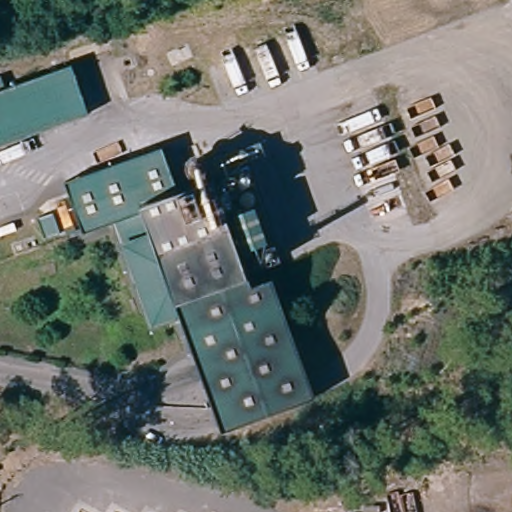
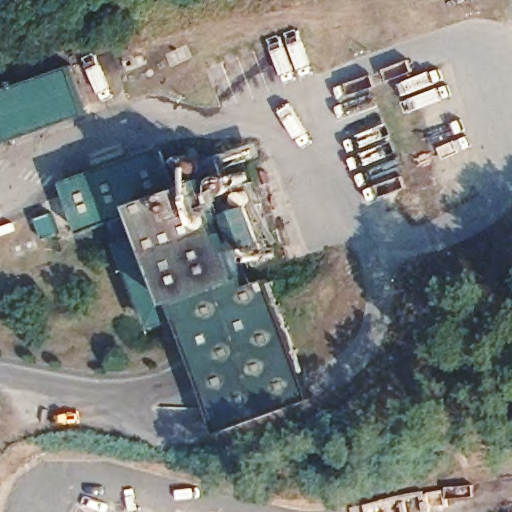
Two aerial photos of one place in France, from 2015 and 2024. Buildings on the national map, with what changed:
unchanged [(87,118),(0,144),(0,90),(71,72),(87,118)]
unchanged [(158,147),(172,192),(188,185),(184,166),(204,155),(218,191),(240,182),(270,264),(309,398),(219,432),(179,321),(146,332),(115,246),(149,236),(137,206),(77,235),(62,184),(158,147)]

